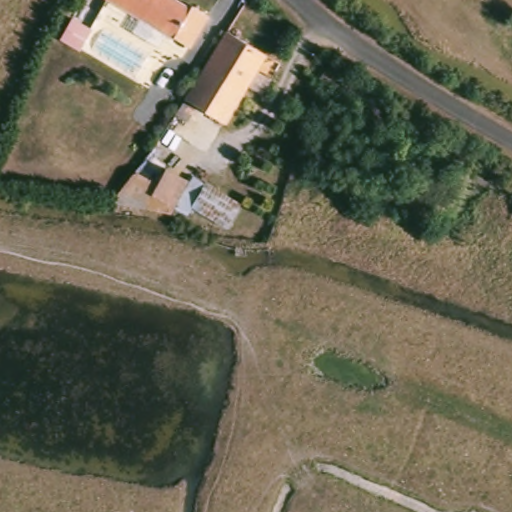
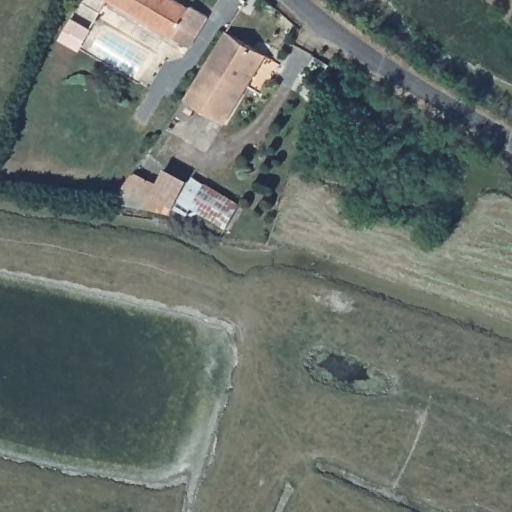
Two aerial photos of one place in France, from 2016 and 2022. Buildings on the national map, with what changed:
unchanged [(187,45),(110,0),(182,0),(206,14),(187,45)]
unchanged [(55,7),(72,17),(60,37),(43,27),(55,7)]
unchanged [(281,45),(233,127),(186,103),(238,17),(281,45)]
unchanged [(230,233),(194,212),(188,219),(176,210),(196,177),(208,186),(246,205),(230,233)]

